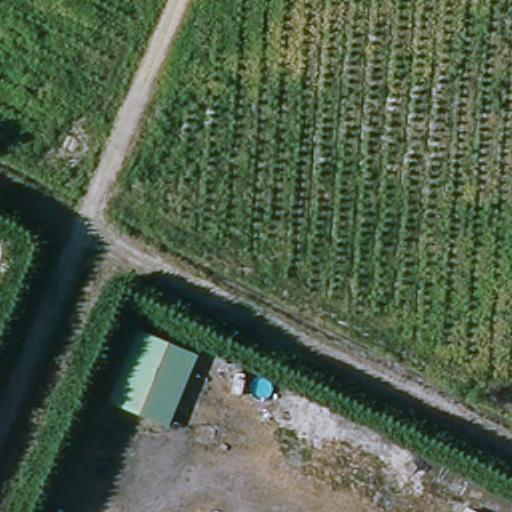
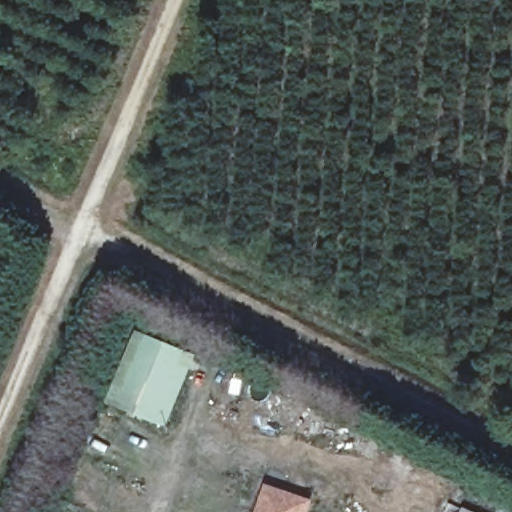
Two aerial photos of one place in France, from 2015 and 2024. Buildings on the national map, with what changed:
unchanged [(98,400),(128,326),(198,355),(168,428),(98,400)]
new [(316,500),(312,512),(258,512),(268,485),(316,500)]
new [(466,507),(477,512),(463,512),(466,507)]

